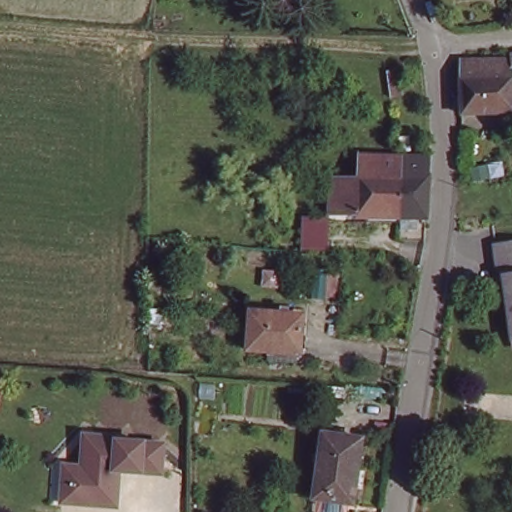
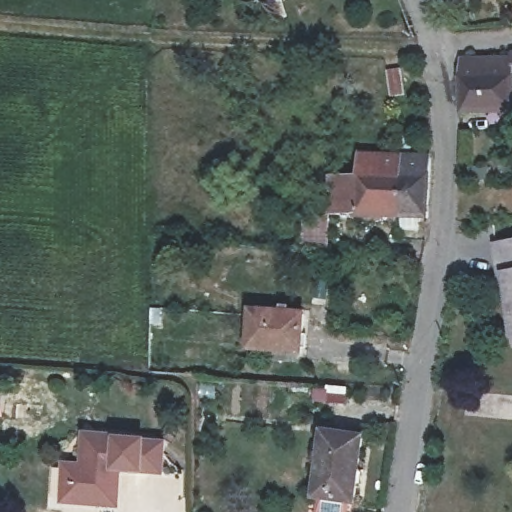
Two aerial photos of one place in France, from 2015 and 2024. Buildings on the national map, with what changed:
unchanged [(507,80),(505,116),(463,115),(467,65),(508,64),(508,59),(512,58),(512,79),(507,80)]
unchanged [(356,177),(356,157),(384,157),(397,157),(397,217),(329,219),(330,177),(356,177)]
unchanged [(397,157),(422,157),(421,217),(397,217),(397,157)]
unchanged [(329,219),(328,256),(304,255),(306,219),(329,219)]
unchanged [(509,298),(504,299),(498,251),(512,249),(512,327),(509,298)]
unchanged [(256,312),(301,313),(300,352),(254,350),(256,312)]
unchanged [(165,473),(123,471),(121,505),(63,501),(64,462),(83,461),(85,431),(168,441),(165,473)]
unchanged [(361,445),(352,505),(320,501),(326,442),(361,445)]

